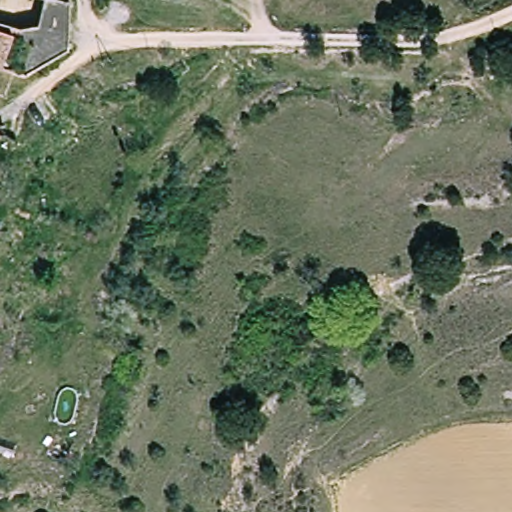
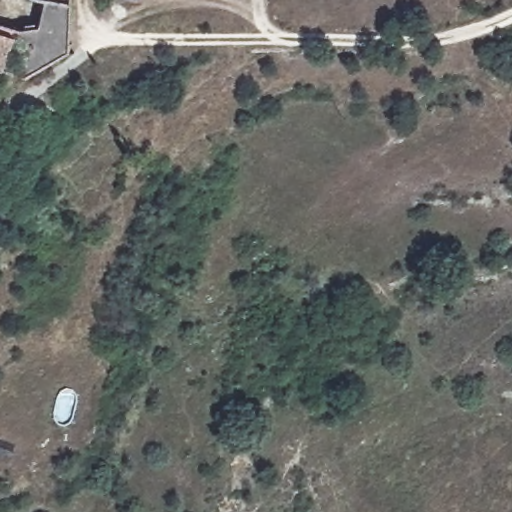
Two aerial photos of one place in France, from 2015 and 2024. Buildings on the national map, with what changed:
unchanged [(69,4),(66,54),(24,77),(0,68),(0,24),(22,31),(39,26),(44,2),(24,0),(25,0),(70,0),(69,4)]
unchanged [(0,141),(0,133),(2,134),(0,141)]

